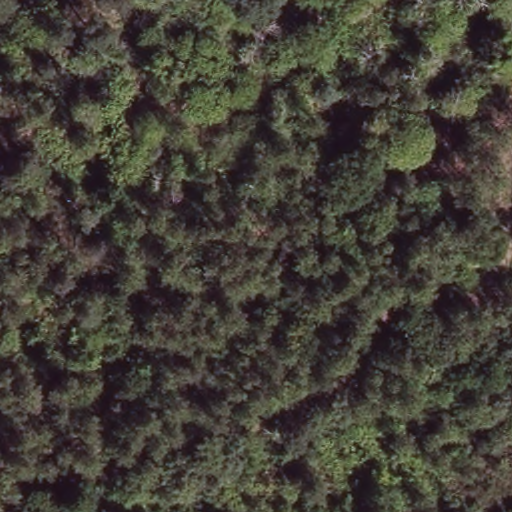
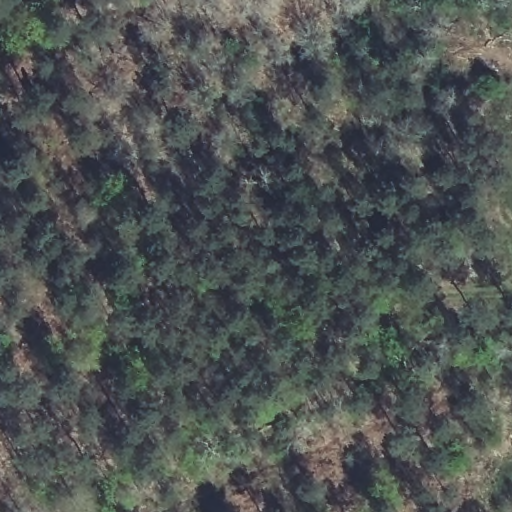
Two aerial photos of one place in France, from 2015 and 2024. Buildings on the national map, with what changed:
[]

